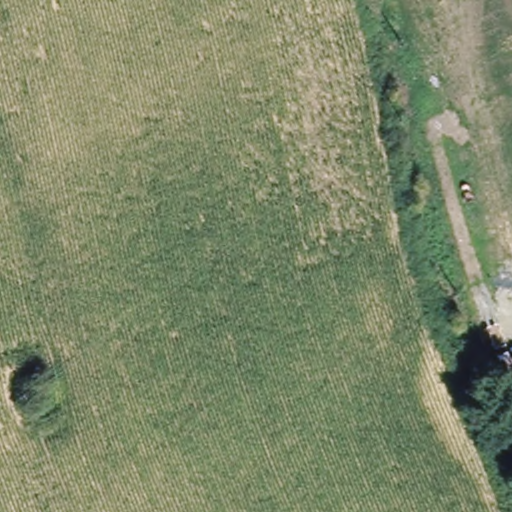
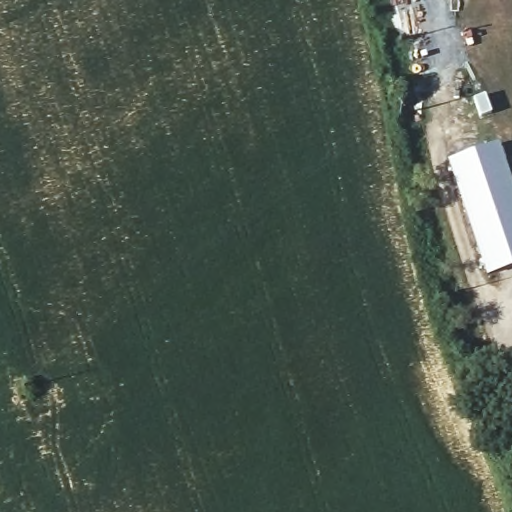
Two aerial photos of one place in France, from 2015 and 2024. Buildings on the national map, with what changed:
new [(512,264),(482,273),(450,157),(499,144),(512,193),(512,264)]

